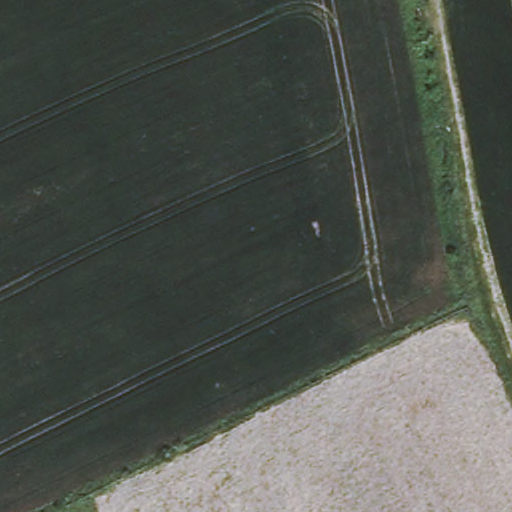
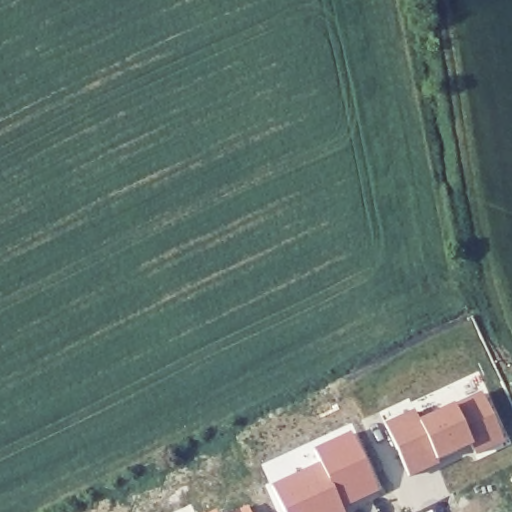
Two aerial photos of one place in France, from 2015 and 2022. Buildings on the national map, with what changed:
new [(415,409),(420,418),(482,391),(506,440),(476,454),(473,444),(439,458),(441,462),(411,475),(386,421),(415,409)]
new [(343,507),(345,512),(286,512),(273,483),(322,460),(315,447),(351,431),(381,490),(343,507)]
new [(231,512),(249,504),(253,512),(231,512)]
new [(218,512),(213,512),(217,510),(218,512)]

